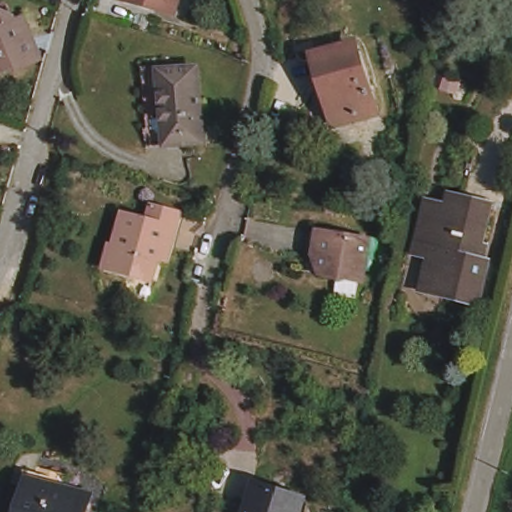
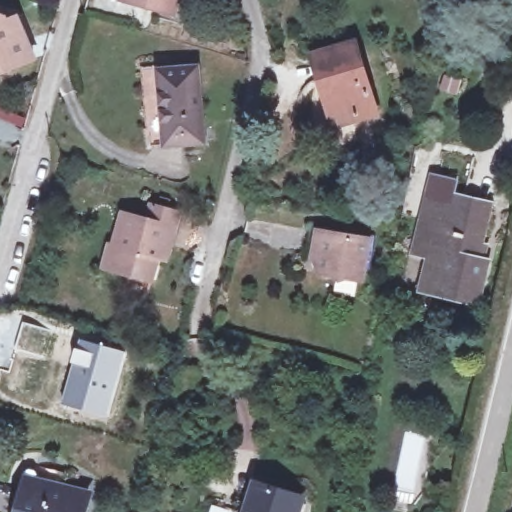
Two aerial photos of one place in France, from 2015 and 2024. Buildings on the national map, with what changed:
unchanged [(128,0),(183,0),(179,16),(128,1),(128,0)]
unchanged [(17,64),(0,71),(0,22),(2,27),(7,25),(16,46),(22,61),(17,64)]
unchanged [(371,111),(332,122),(317,54),(352,42),(371,111)]
unchanged [(205,145),(155,149),(152,129),(146,130),(142,66),(159,64),(160,76),(200,72),(205,145)]
unchanged [(407,241),(417,199),(441,205),(443,192),(456,195),(455,201),(481,208),(474,243),(465,242),(462,260),(479,263),(470,305),(414,291),(420,262),(404,257),(407,241)]
unchanged [(159,262),(152,285),(110,273),(125,220),(150,227),(154,213),(179,220),(175,235),(170,252),(167,265),(159,262)]
unchanged [(355,277),(315,272),(317,255),(308,254),(311,230),(359,236),(355,277)]
new [(80,335),(127,351),(107,417),(60,404),(80,335)]
unchanged [(18,484),(20,475),(40,480),(43,470),(57,475),(59,471),(68,475),(63,493),(83,501),(80,512),(8,512),(15,483),(18,484)]
unchanged [(302,495),(298,512),(251,512),(259,482),(302,495)]

